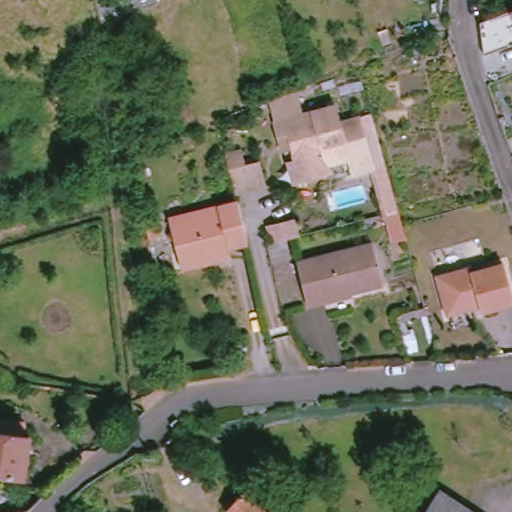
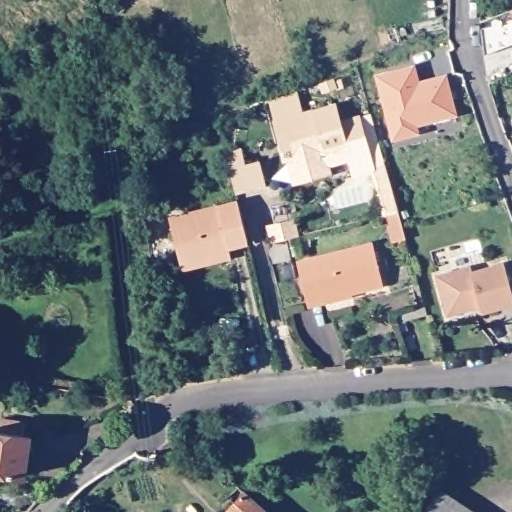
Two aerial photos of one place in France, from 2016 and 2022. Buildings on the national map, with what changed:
unchanged [(481,19),(512,7),(512,45),(488,53),(481,19)]
new [(458,113),(418,126),(421,134),(397,141),(376,80),(413,68),(419,88),(427,86),(426,82),(445,75),(458,113)]
unchanged [(377,167),(356,174),(351,157),(328,164),(330,171),(296,182),(290,163),(297,160),(293,146),(283,150),(281,143),(276,122),(338,104),(342,121),(362,115),(372,112),(387,165),(400,209),(390,211),(377,167)]
unchanged [(223,152),(239,149),(243,165),(256,161),(261,185),(233,192),(223,152)]
unchanged [(211,260),(181,267),(168,217),(235,200),(246,242),(227,247),(229,255),(211,260)]
unchanged [(271,226),(296,220),(300,235),(275,241),(271,226)]
unchanged [(349,292),(348,288),(320,295),(321,300),(304,303),(294,263),(370,245),(379,284),(349,292)]
unchanged [(503,262),(512,298),(512,302),(488,307),(475,269),(503,262)]
unchanged [(481,310),(478,300),(473,302),(471,306),(446,312),(437,273),(471,265),(472,270),(475,269),(488,307),(481,310)]
unchanged [(22,420),(22,434),(31,435),(26,475),(0,471),(0,417),(22,420)]
unchanged [(239,488),(266,512),(229,512),(223,506),(239,488)]
unchanged [(445,512),(419,512),(428,500),(445,512)]

